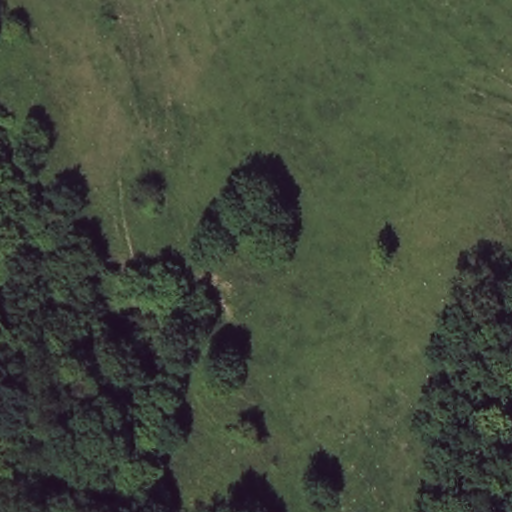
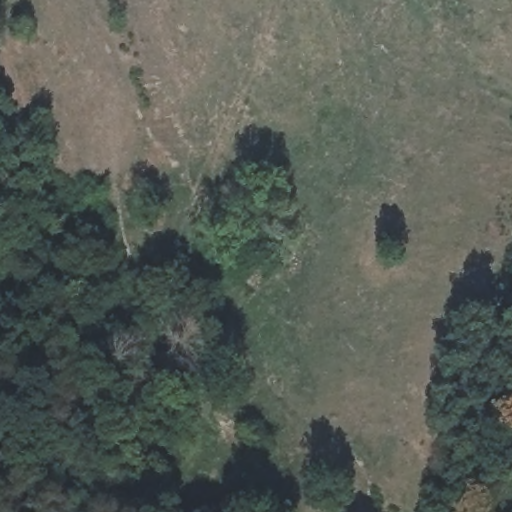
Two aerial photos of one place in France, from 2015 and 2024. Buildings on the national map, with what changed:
[]

